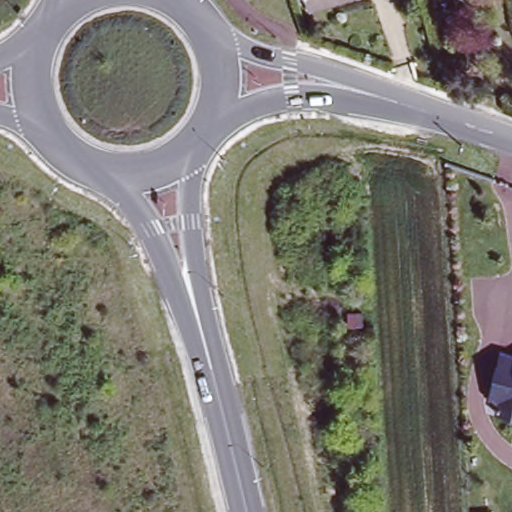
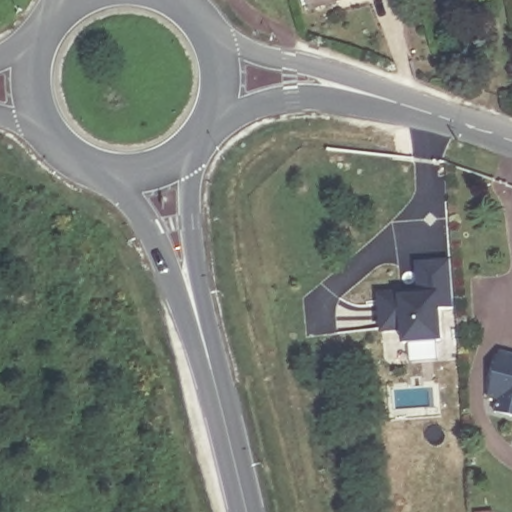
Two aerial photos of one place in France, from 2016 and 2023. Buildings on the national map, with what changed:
unchanged [(311,6),(309,0),(333,0),(311,6)]
new [(420,292),(417,264),(451,262),(455,310),(439,311),(442,341),(405,344),(403,330),(382,332),(379,295),(402,293),(420,292)]
unchanged [(512,356),(512,415),(487,410),(501,351),(512,356)]

